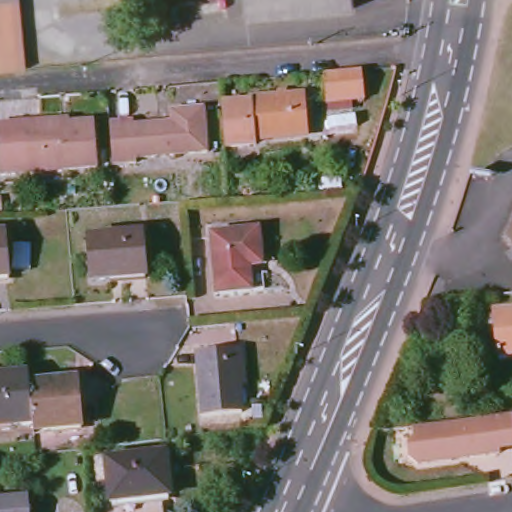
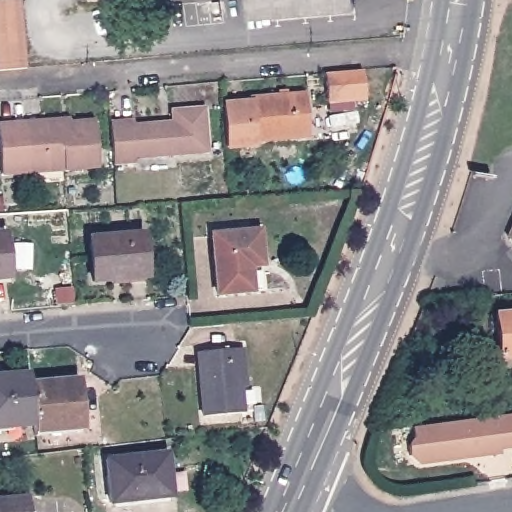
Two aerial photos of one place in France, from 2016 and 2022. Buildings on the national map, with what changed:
unchanged [(0,71),(0,0),(16,0),(23,69),(0,71)]
unchanged [(352,0),(353,7),(245,16),(244,0),(352,0)]
unchanged [(362,69),(364,99),(326,103),(324,73),(362,69)]
unchanged [(221,104),(249,101),(249,98),(301,95),(304,136),(253,140),(253,145),(224,148),(221,104)]
unchanged [(113,123),(136,122),(137,126),(173,123),(173,111),(206,108),(211,152),(140,158),(141,162),(115,164),(113,123)]
unchanged [(60,124),(93,122),(97,166),(0,174),(0,125),(60,120),(60,124)]
unchanged [(9,277),(0,278),(0,232),(5,231),(9,277)]
unchanged [(213,235),(259,231),(262,265),(251,266),(252,290),(218,294),(213,235)]
unchanged [(510,236),(512,232),(512,239),(510,236)]
unchanged [(90,238),(144,233),(148,276),(94,282),(90,238)]
unchanged [(496,317),(512,315),(512,358),(501,359),(496,317)]
unchanged [(198,351),(241,348),(242,362),(238,363),(241,412),(204,416),(198,351)]
unchanged [(33,424),(0,427),(0,375),(28,373),(29,384),(33,424)]
unchanged [(33,424),(29,384),(78,380),(83,427),(34,433),(33,424)]
unchanged [(500,448),(501,453),(462,458),(462,455),(453,456),(454,459),(421,464),(412,457),(411,446),(416,439),(414,427),(512,415),(512,447),(500,448)]
unchanged [(108,459),(166,453),(171,495),(113,501),(108,459)]
unchanged [(29,512),(0,512),(0,499),(28,497),(29,512)]

